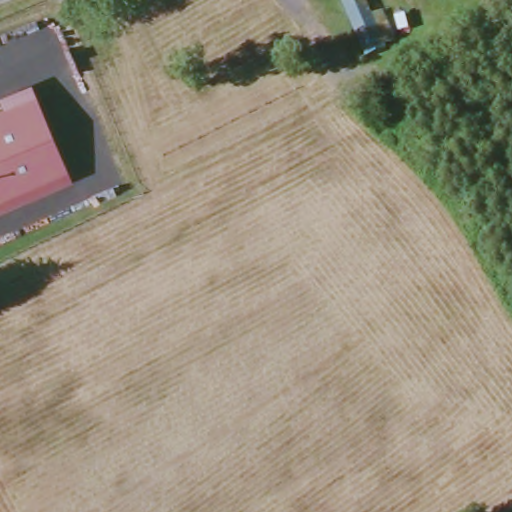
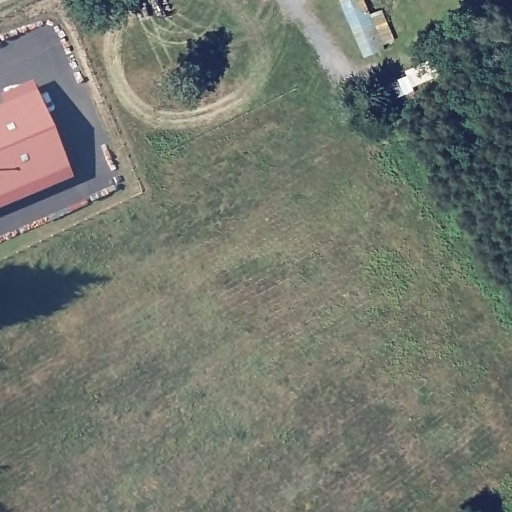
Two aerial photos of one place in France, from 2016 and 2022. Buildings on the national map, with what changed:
unchanged [(363,58),(337,0),(365,0),(384,46),(363,58)]
unchanged [(3,105),(0,98),(0,94),(30,83),(70,180),(0,209),(0,106),(3,105)]

